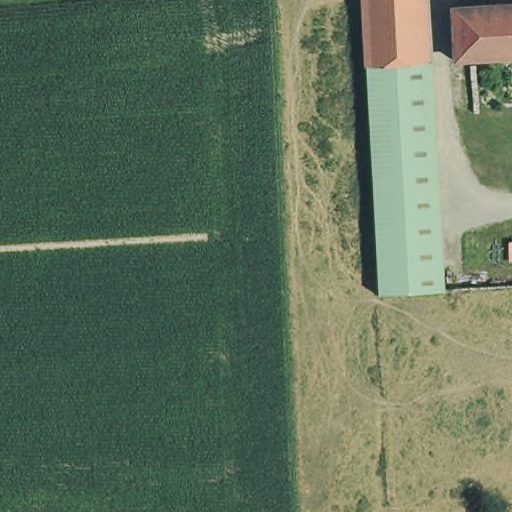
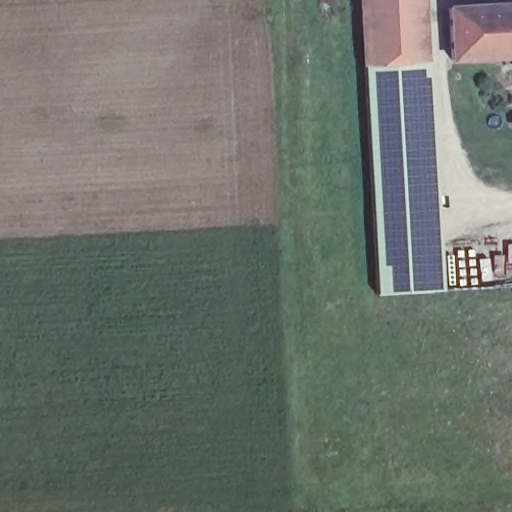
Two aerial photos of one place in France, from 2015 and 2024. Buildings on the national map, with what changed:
unchanged [(414,0),(417,60),(366,63),(363,0),(414,0)]
unchanged [(454,53),(451,1),(467,0),(506,0),(509,49),(454,53)]
unchanged [(506,0),(512,0),(512,49),(509,49),(506,0)]
unchanged [(417,60),(420,60),(431,291),(378,294),(366,63),(417,60)]

